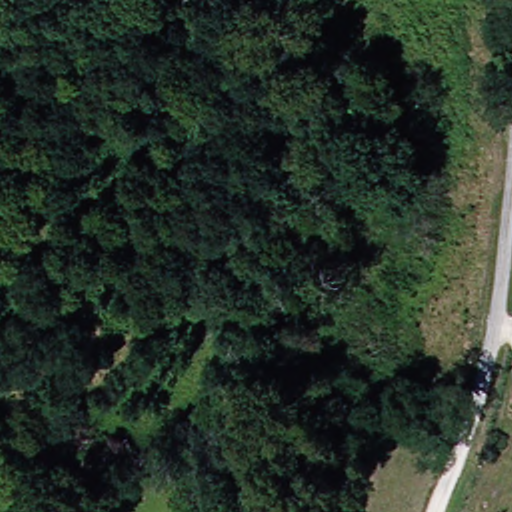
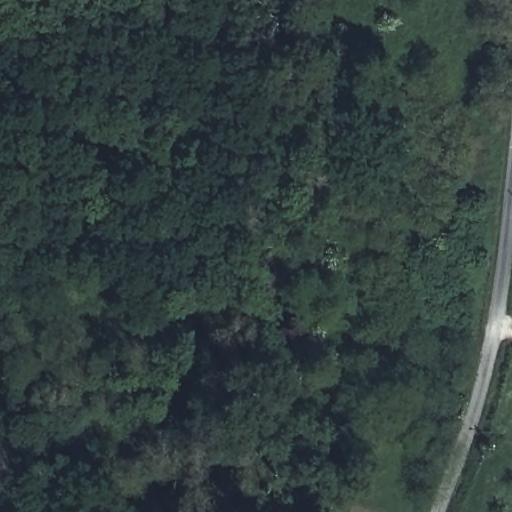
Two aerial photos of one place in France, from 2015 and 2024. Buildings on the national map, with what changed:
unchanged [(511,42),(501,42),(501,30),(512,30),(511,42)]
unchanged [(93,482),(80,459),(126,438),(139,462),(93,482)]

